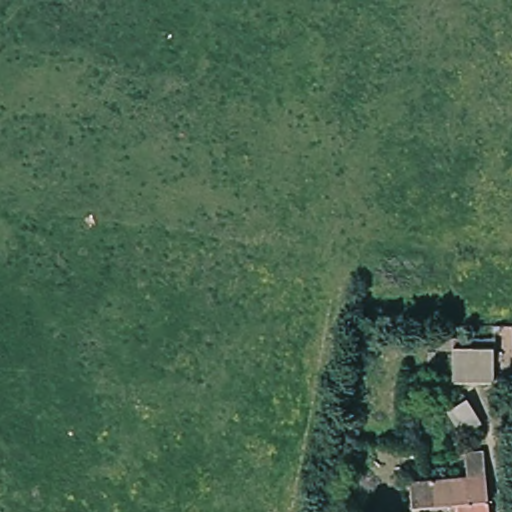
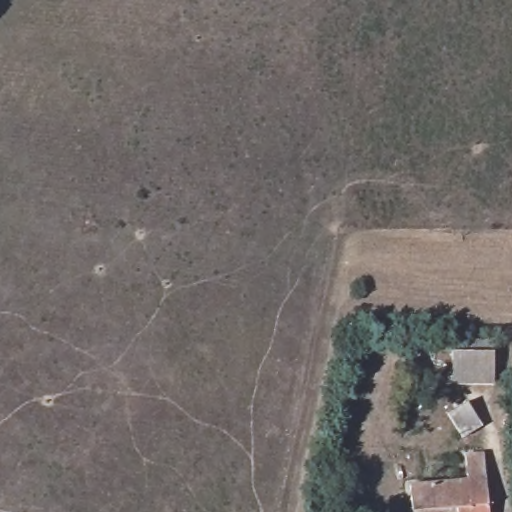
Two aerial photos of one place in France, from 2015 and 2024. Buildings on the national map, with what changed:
unchanged [(433,344),(451,343),(451,354),(434,354),(433,344)]
unchanged [(492,383),(452,383),(451,354),(490,354),(492,383)]
unchanged [(482,426),(464,439),(447,414),(467,401),(482,426)]
unchanged [(414,488),(465,485),(465,462),(486,460),(490,512),(415,512),(414,488)]

